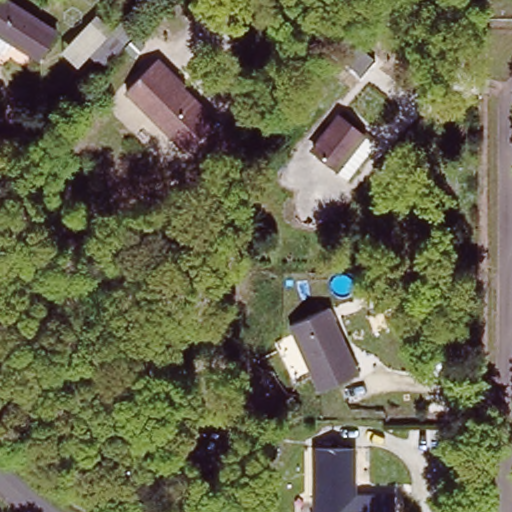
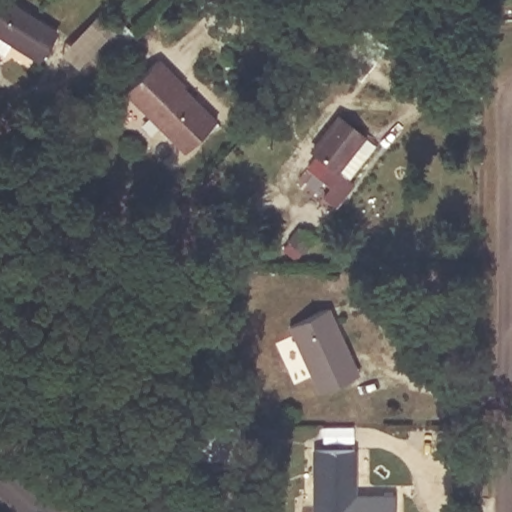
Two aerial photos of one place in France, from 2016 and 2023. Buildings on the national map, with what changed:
unchanged [(14,0),(59,30),(43,54),(0,26),(0,4),(3,0),(14,0)]
unchanged [(121,21),(134,34),(123,44),(103,65),(101,68),(88,54),(110,33),(121,21)]
unchanged [(338,44),(345,36),(378,64),(362,82),(329,54),(338,44)]
unchanged [(163,53),(224,114),(193,144),(131,83),(163,53)]
unchanged [(351,178),(338,169),(336,169),(315,154),(339,119),(363,135),(356,144),(369,153),(351,178)]
unchanged [(360,372),(317,390),(287,324),(328,305),(360,372)]
unchanged [(313,453),(351,452),(351,497),(393,496),(392,512),(313,512),(313,453)]

